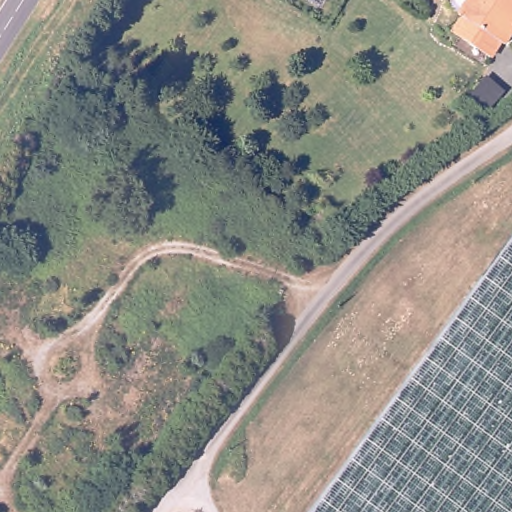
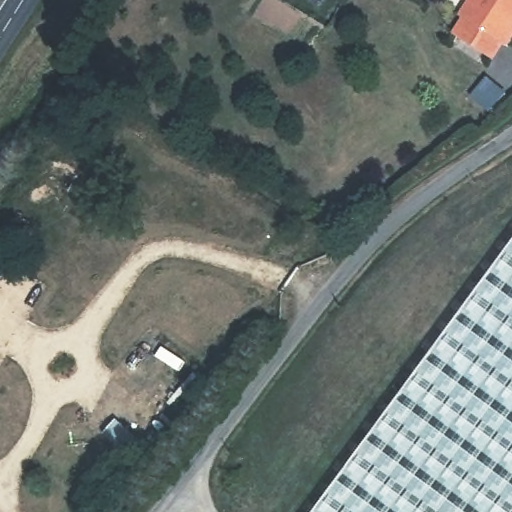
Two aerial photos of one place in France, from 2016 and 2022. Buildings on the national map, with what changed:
unchanged [(512,18),(512,42),(468,13),(477,0),(512,0),(512,18)]
unchanged [(512,512),(312,512),(512,239),(512,512)]

